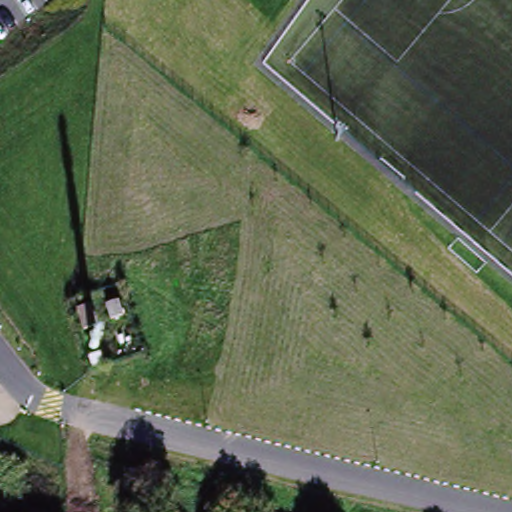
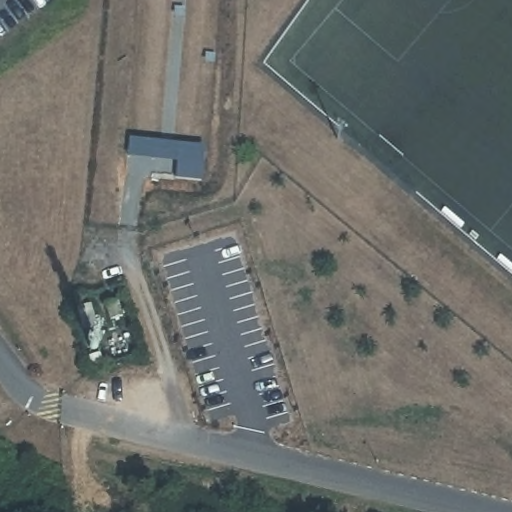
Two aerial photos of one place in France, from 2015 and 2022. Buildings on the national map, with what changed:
new [(205,144),(202,180),(176,177),(177,157),(130,153),(131,136),(205,144)]

